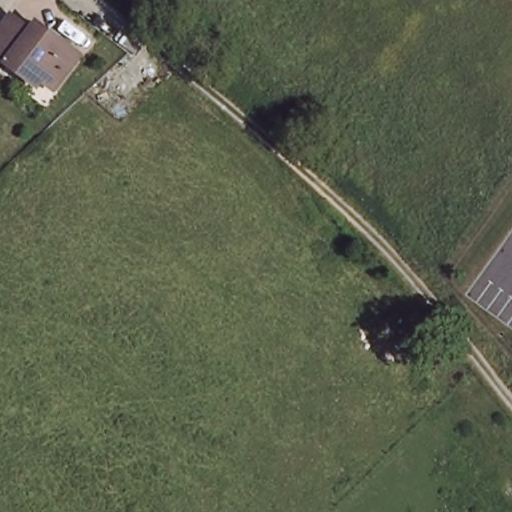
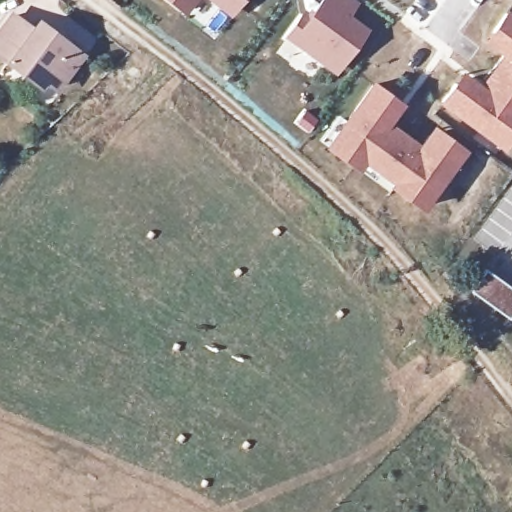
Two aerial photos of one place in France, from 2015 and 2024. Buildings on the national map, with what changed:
new [(169,0),(198,0),(186,14),(169,0)]
new [(213,0),(246,0),(233,15),(213,0)]
new [(348,19),(366,34),(338,73),(290,39),(305,18),(311,23),(328,0),(347,0),(357,7),(348,19)]
unchanged [(48,35),(55,28),(97,64),(72,96),(27,62),(22,67),(5,52),(7,51),(0,47),(0,14),(3,9),(25,25),(29,20),(48,35)]
new [(467,81),(482,93),(508,58),(493,47),(499,39),(493,34),(507,16),(512,20),(512,120),(495,143),(479,131),(443,104),(455,86),(460,90),(467,81)]
new [(449,181),(443,177),(420,208),(392,187),(395,183),(334,138),(346,122),(373,85),(391,98),(386,104),(395,110),(384,124),(418,151),(430,135),(439,142),(442,136),(459,149),(468,155),(449,181)]
new [(346,122),(334,138),(395,183),(392,187),(389,192),(319,140),(337,115),(346,122)]
new [(473,139),(479,131),(495,143),(512,120),(512,138),(497,158),(473,139)]
new [(512,290),(512,320),(510,322),(470,292),(486,270),(512,290)]

